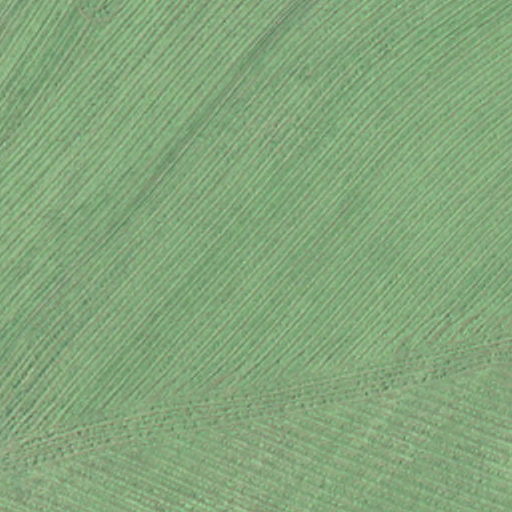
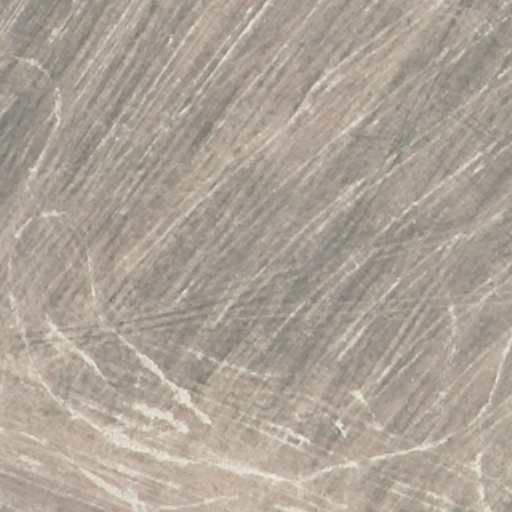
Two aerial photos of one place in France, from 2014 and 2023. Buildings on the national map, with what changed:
[]

